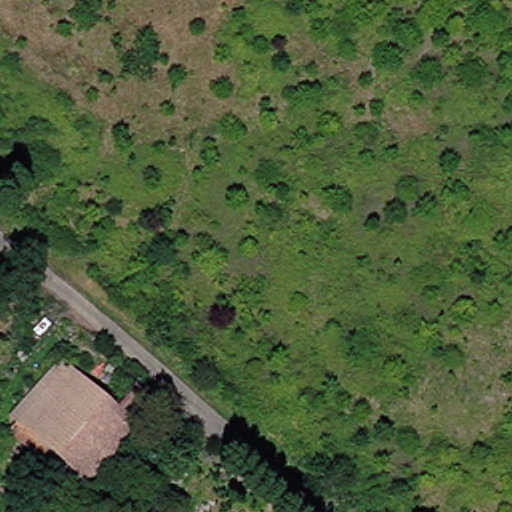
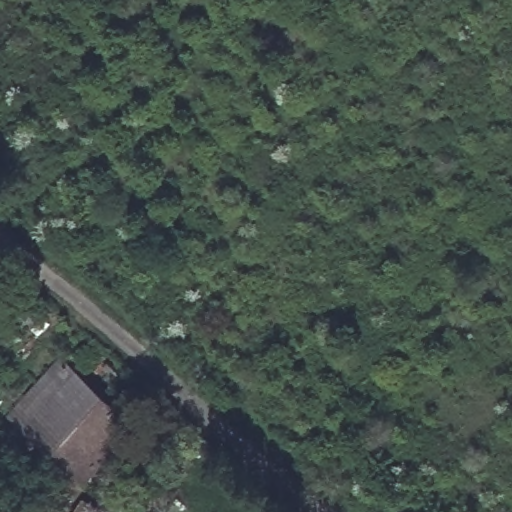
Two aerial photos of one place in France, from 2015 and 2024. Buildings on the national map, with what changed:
unchanged [(48,465),(59,452),(19,418),(27,409),(21,404),(66,351),(126,400),(144,379),(160,392),(95,469),(78,456),(75,458),(61,476),(48,465)]

